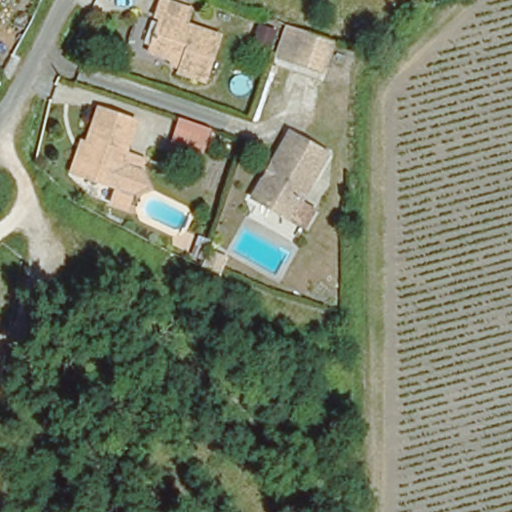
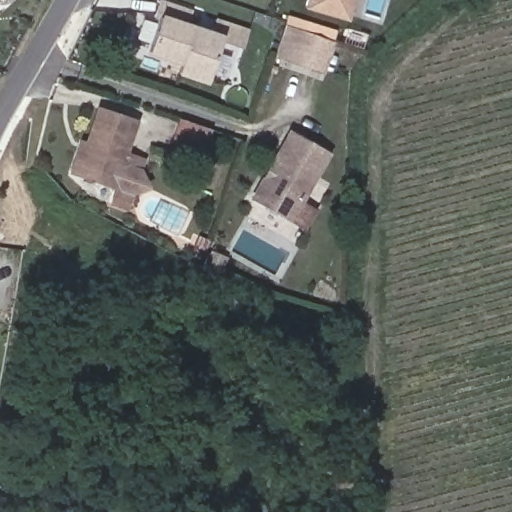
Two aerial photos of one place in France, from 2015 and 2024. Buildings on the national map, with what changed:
unchanged [(172,49),(147,40),(160,7),(155,5),(157,0),(188,0),(195,2),(190,17),(220,29),(205,72),(175,62),(169,59),(172,49)]
new [(349,19),(307,7),(309,0),(354,0),(349,19)]
unchanged [(283,63),(294,32),(325,42),(314,74),(283,63)]
unchanged [(137,119),(126,152),(145,159),(128,209),(112,204),(118,187),(76,172),(70,170),(82,137),(88,139),(101,106),(137,119)]
unchanged [(178,146),(184,127),(212,137),(206,155),(178,146)]
unchanged [(284,216),(254,199),(267,177),(273,166),(293,132),(328,155),(301,203),(291,221),(284,216)]

